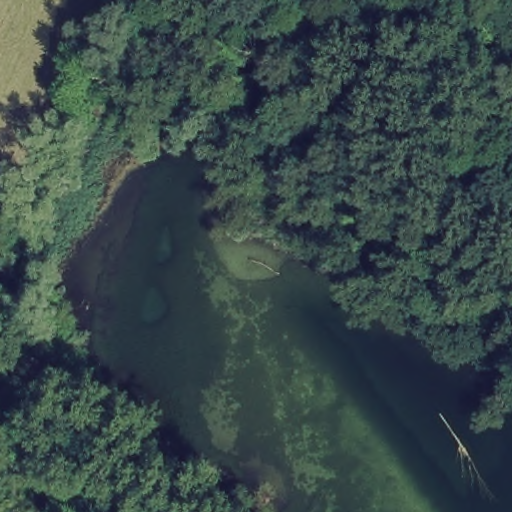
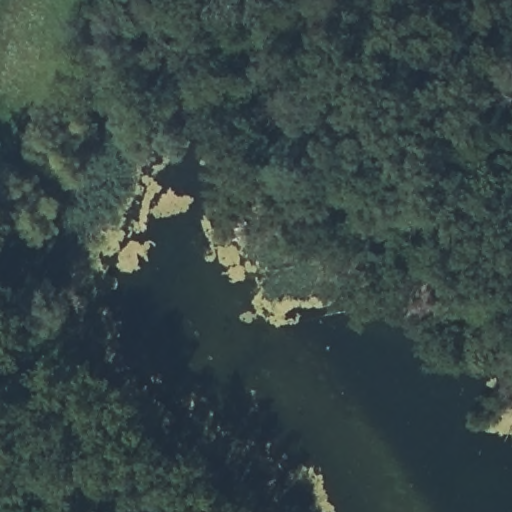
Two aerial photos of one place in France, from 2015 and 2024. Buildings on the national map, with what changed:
[]

